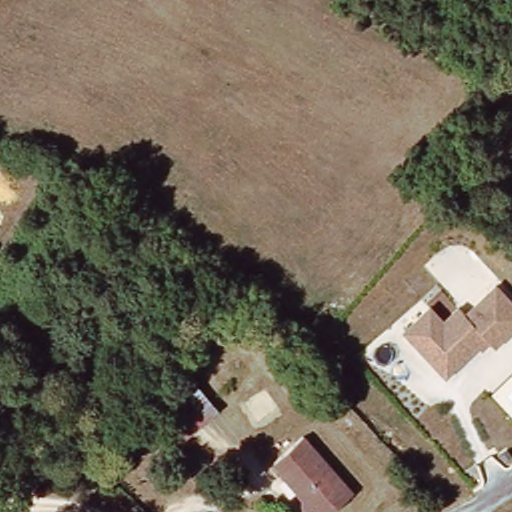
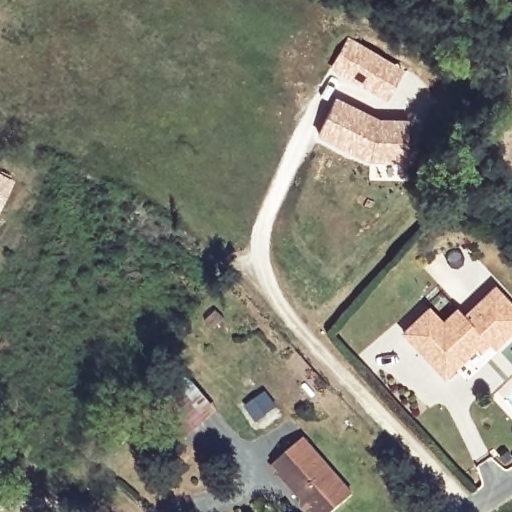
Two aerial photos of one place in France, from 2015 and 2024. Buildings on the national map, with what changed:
new [(350,37),(405,71),(387,100),(330,69),(350,37)]
new [(404,120),(406,161),(370,161),(317,136),(336,98),(380,118),(404,120)]
new [(0,173),(13,180),(0,206),(0,173)]
unchanged [(512,305),(512,334),(492,352),(483,343),(456,371),(426,342),(415,352),(401,335),(431,308),(442,323),(460,309),(466,315),(497,290),(512,305)]
new [(217,409),(188,437),(162,410),(192,382),(217,409)]
unchanged [(308,512),(306,509),(298,508),(302,500),(278,462),(312,440),(353,500),(335,512),(308,512)]

